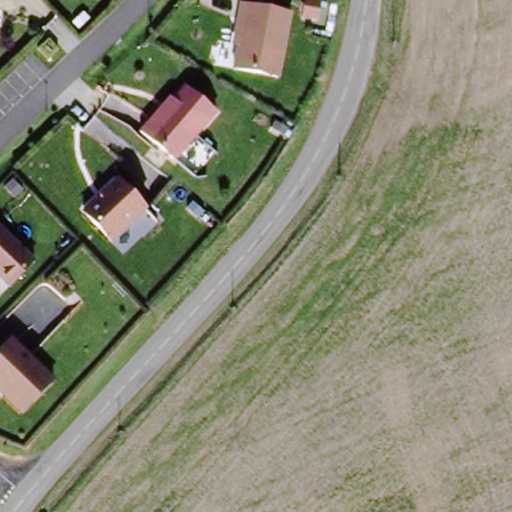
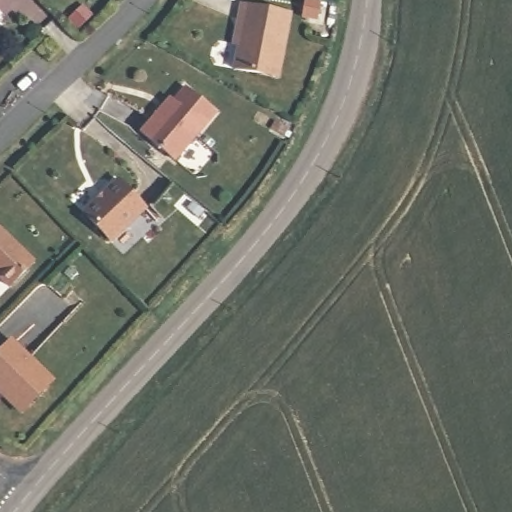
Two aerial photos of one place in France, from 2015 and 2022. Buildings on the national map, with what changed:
unchanged [(246,13),(248,0),(259,0),(295,9),(280,70),(240,60),(250,14),(246,13)]
unchanged [(142,126),(162,104),(166,107),(188,81),(217,106),(175,155),(142,126)]
unchanged [(148,204),(114,237),(87,210),(122,177),(148,204)]
unchanged [(0,271),(0,221),(36,255),(10,281),(0,271)]
unchanged [(14,336),(54,377),(23,409),(0,385),(0,350),(14,336)]

